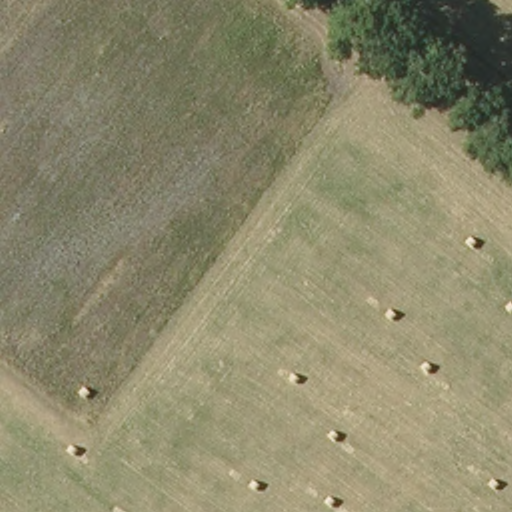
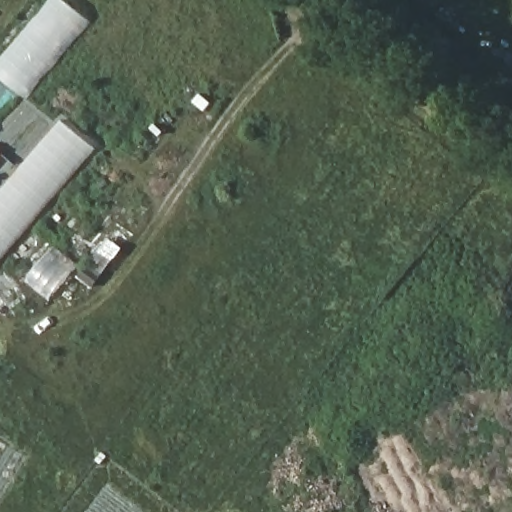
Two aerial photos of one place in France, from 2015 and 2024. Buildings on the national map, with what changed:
new [(0,73),(0,59),(49,0),(61,0),(86,21),(27,95),(0,73)]
new [(97,149),(0,263),(0,196),(64,121),(97,149)]
new [(0,155),(0,153),(1,154),(0,155)]
new [(72,270),(44,298),(22,279),(52,250),(72,270)]

